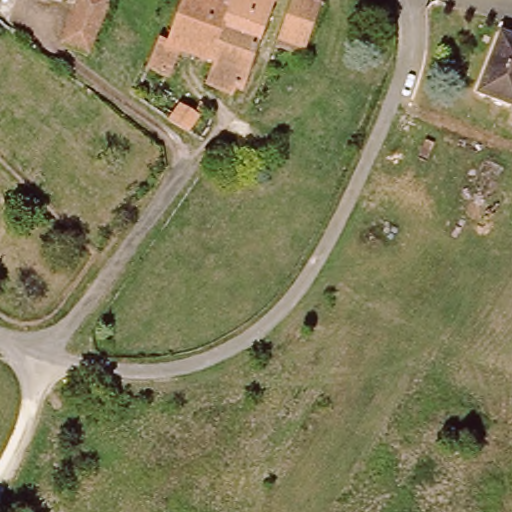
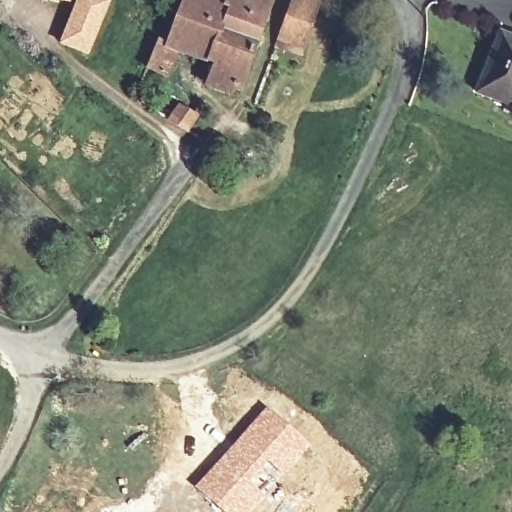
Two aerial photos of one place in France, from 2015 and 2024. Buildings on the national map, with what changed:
unchanged [(0,17),(0,0),(9,0),(3,18),(0,17)]
unchanged [(82,2),(76,0),(82,0),(82,2)]
unchanged [(76,44),(90,0),(120,0),(102,53),(76,44)]
unchanged [(257,91),(251,87),(247,95),(224,85),(231,64),(192,50),(180,77),(162,69),(171,43),(183,46),(198,0),(226,0),(240,5),(241,0),(288,0),(257,91)]
unchanged [(332,2),(317,46),(292,37),(303,11),(306,0),(326,0),(332,2)]
unchanged [(512,52),(512,97),(496,88),(512,52)]
unchanged [(206,128),(192,118),(205,101),(218,110),(206,128)]
new [(311,445),(251,512),(223,512),(195,487),(268,406),(311,445)]

